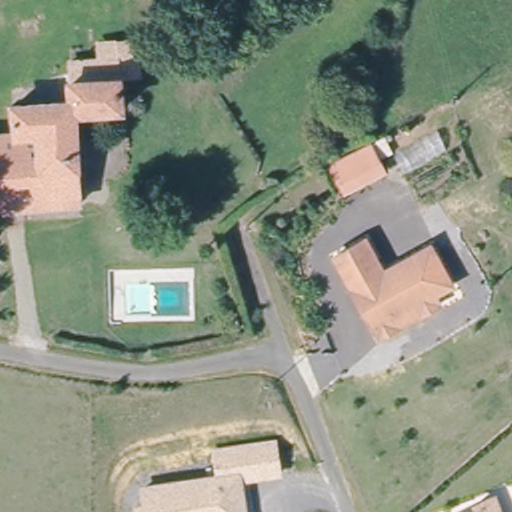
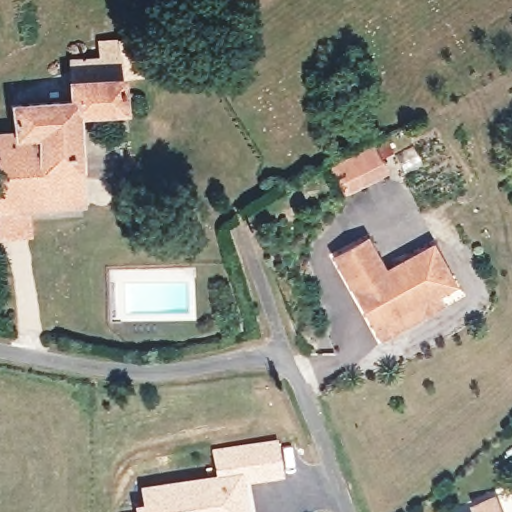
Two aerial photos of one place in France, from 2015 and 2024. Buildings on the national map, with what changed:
unchanged [(120,53),(140,51),(143,78),(119,79),(122,111),(81,116),(84,208),(0,211),(0,103),(69,99),(69,59),(98,57),(98,43),(107,43),(106,33),(119,32),(120,53)]
unchanged [(384,176),(344,193),(333,163),(369,145),(384,176)]
unchanged [(381,330),(369,307),(351,282),(334,249),(374,227),(394,260),(434,242),(455,278),(437,288),(441,296),(424,306),(401,319),(381,330)]
unchanged [(243,330),(233,332),(232,317),(239,317),(243,330)]
unchanged [(151,508),(148,491),(224,478),(221,453),(279,444),(284,475),(243,482),(249,512),(143,512),(143,509),(151,508)]
unchanged [(494,495),(501,512),(463,512),(478,507),(476,502),(494,495)]

